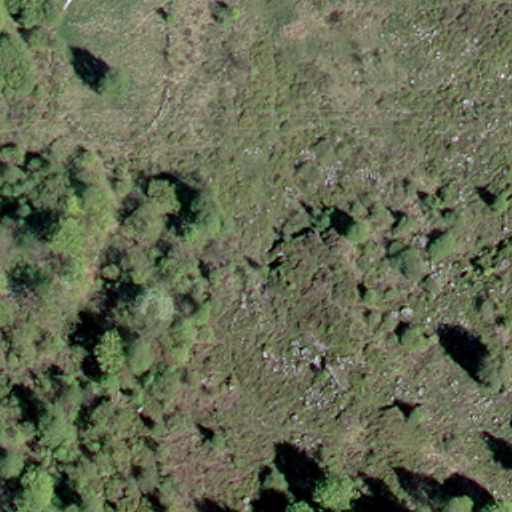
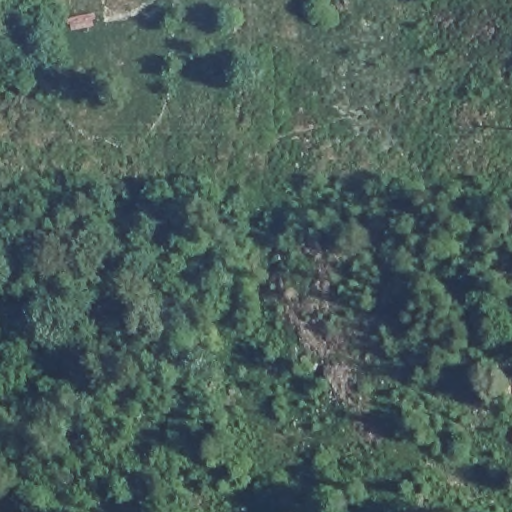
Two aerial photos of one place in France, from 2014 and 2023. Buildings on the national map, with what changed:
[]

